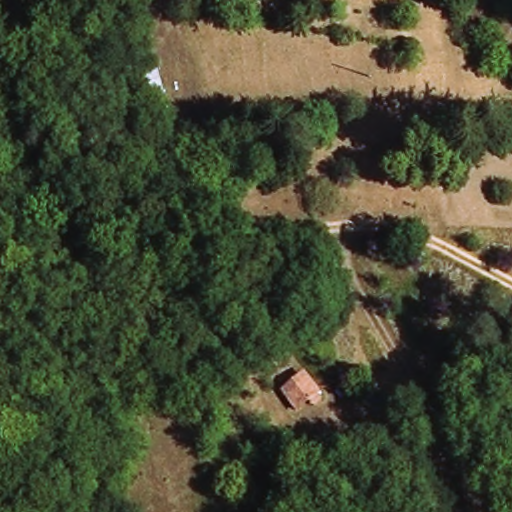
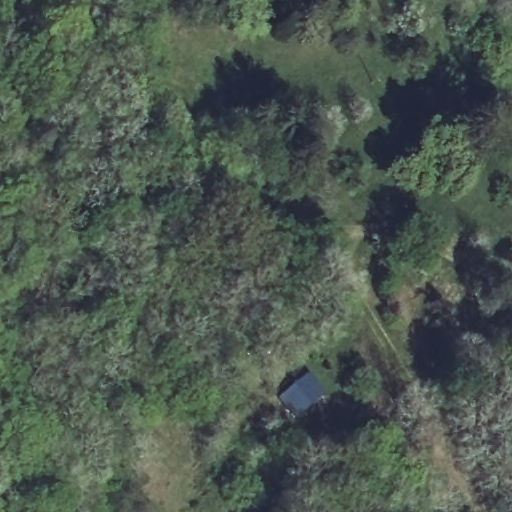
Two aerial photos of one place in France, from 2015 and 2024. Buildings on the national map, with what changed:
unchanged [(297,419),(278,395),(302,374),(320,398),(297,419)]

